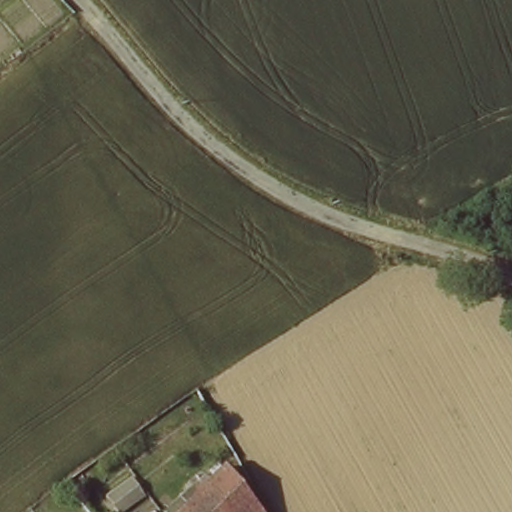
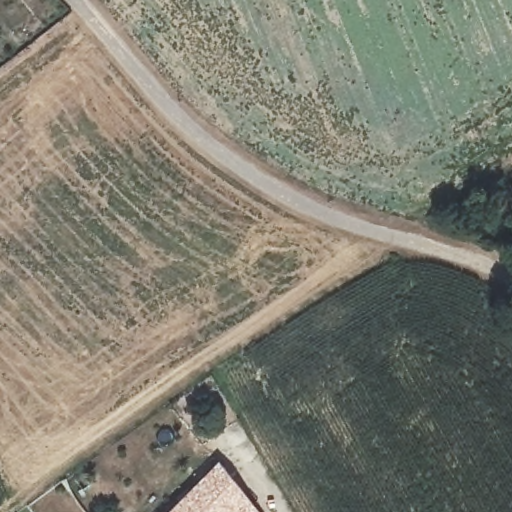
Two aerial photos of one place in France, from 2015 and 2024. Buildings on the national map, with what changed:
unchanged [(217,462),(255,509),(251,512),(223,512),(222,510),(221,509),(215,501),(200,479),(217,462)]
unchanged [(215,501),(204,512),(167,512),(200,479),(215,501)]
unchanged [(222,510),(223,512),(204,512),(215,501),(221,509),(222,510)]

